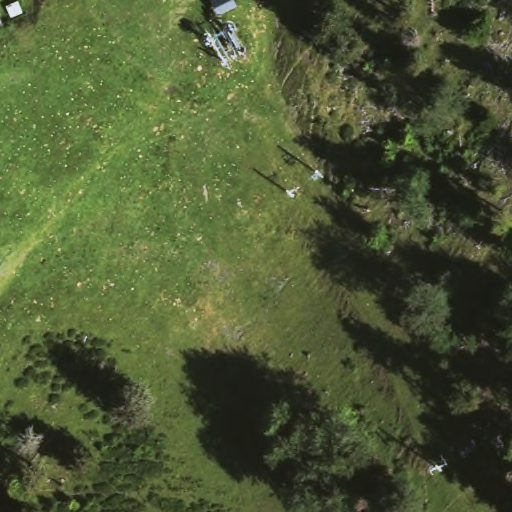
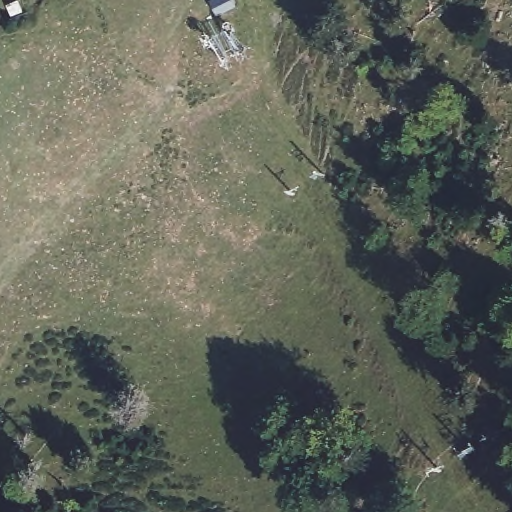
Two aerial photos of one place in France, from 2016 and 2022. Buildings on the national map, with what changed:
unchanged [(0,25),(0,0),(3,0),(10,21),(0,25)]

